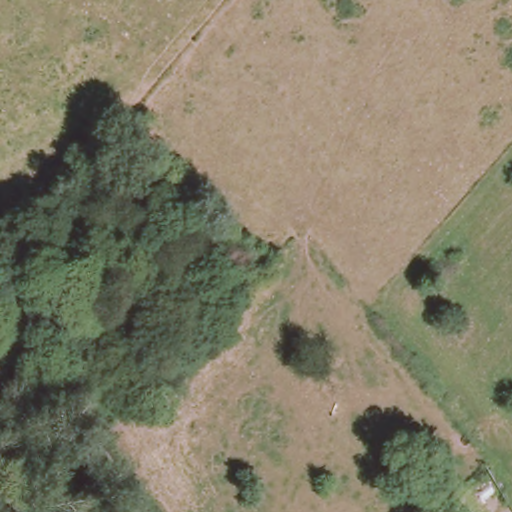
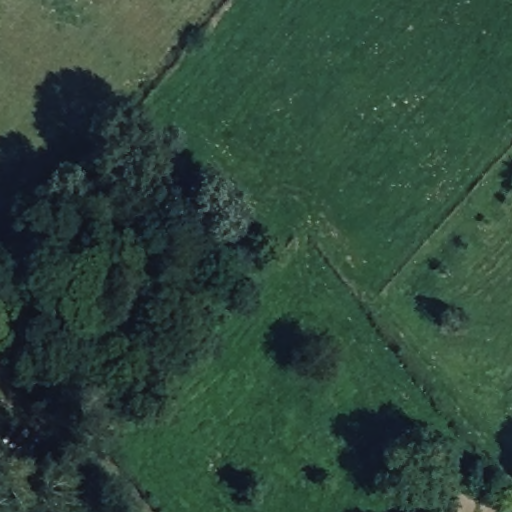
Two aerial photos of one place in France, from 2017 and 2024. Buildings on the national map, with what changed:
[]

